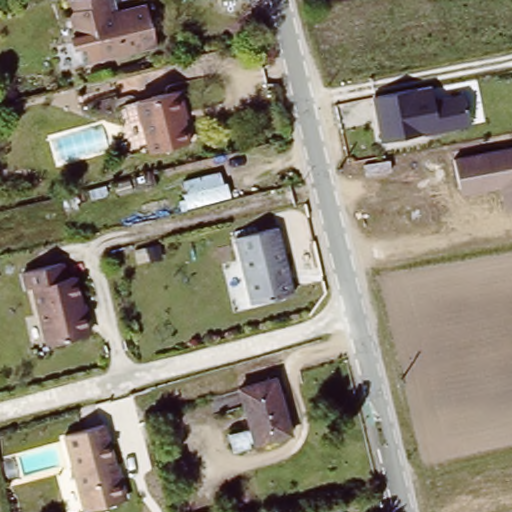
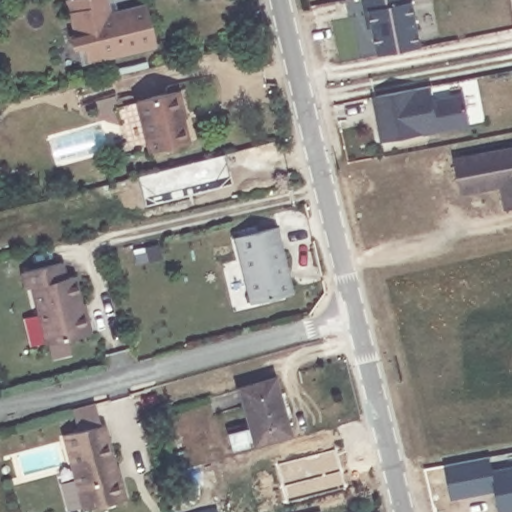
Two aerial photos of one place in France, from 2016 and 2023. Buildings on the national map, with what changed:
unchanged [(90,55),(77,0),(112,0),(114,10),(153,1),(164,46),(98,60),(90,55)]
new [(378,55),(373,28),(368,29),(363,0),(413,0),(422,47),(378,55)]
unchanged [(431,80),(435,96),(465,90),(471,121),(383,137),(374,91),(431,80)]
unchanged [(184,137),(145,145),(132,94),(170,86),(184,137)]
unchanged [(450,158),(512,146),(512,208),(503,210),(498,186),(457,195),(450,158)]
unchanged [(212,181),(214,190),(194,196),(191,186),(212,181)]
demolished [(32,243),(0,252),(0,221),(24,215),(32,243)]
unchanged [(249,302),(235,239),(277,228),(292,292),(249,302)]
unchanged [(41,344),(27,285),(21,286),(17,271),(56,262),(60,278),(68,276),(82,334),(41,344)]
unchanged [(275,376),(288,432),(251,440),(238,385),(275,376)]
unchanged [(105,423),(125,498),(85,510),(65,433),(105,423)]
new [(494,491),(450,500),(442,465),(488,455),(493,470),(512,466),(512,512),(498,512),(494,491)]

